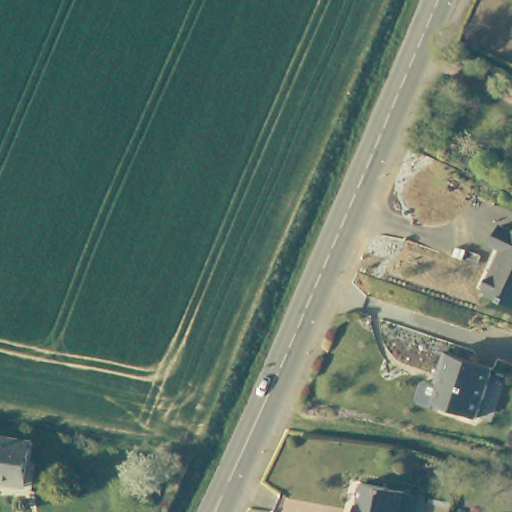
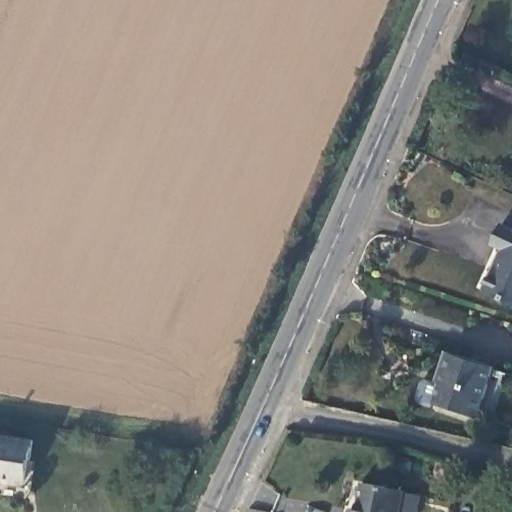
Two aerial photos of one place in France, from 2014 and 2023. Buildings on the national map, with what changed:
unchanged [(512,309),(483,297),(490,279),(494,280),(504,257),(490,251),(499,232),(512,238),(512,309)]
unchanged [(496,370),(480,416),(437,401),(444,378),(443,367),(448,353),(496,370)]
unchanged [(31,446),(24,491),(0,487),(0,440),(31,446)]
unchanged [(358,487),(416,497),(414,512),(352,512),(358,487)]

